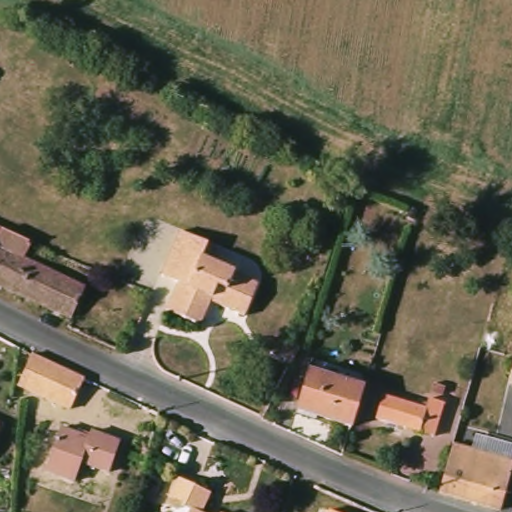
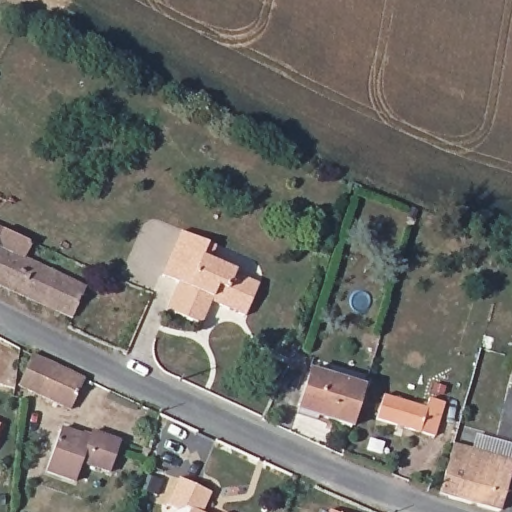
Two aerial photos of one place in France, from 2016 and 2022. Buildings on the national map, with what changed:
unchanged [(198,324),(164,309),(177,282),(160,274),(181,229),(206,239),(215,244),(209,257),(235,269),(233,272),(258,284),(244,315),(217,304),(209,300),(198,324)]
unchanged [(30,244),(22,260),(54,275),(40,305),(0,287),(0,230),(30,244)]
unchanged [(84,289),(70,318),(40,305),(54,275),(84,289)]
unchanged [(273,351),(280,337),(296,344),(288,358),(273,351)]
unchanged [(85,383),(71,414),(20,389),(35,359),(85,383)]
unchanged [(512,369),(512,386),(508,385),(512,369)]
unchanged [(362,388),(349,429),(301,415),(314,374),(362,388)]
unchanged [(421,413),(423,404),(439,409),(428,443),(371,424),(378,399),(421,413)]
unchanged [(1,423),(0,425),(0,423),(1,423)]
unchanged [(85,457),(77,477),(50,467),(65,424),(82,430),(92,434),(96,426),(125,437),(116,465),(114,469),(85,457)]
unchanged [(512,460),(512,480),(503,512),(501,512),(442,495),(456,445),(512,460)]
unchanged [(184,511),(182,512),(168,512),(165,510),(178,483),(210,498),(203,512),(185,512),(184,511)]
unchanged [(329,508),(337,512),(328,512),(329,508)]

